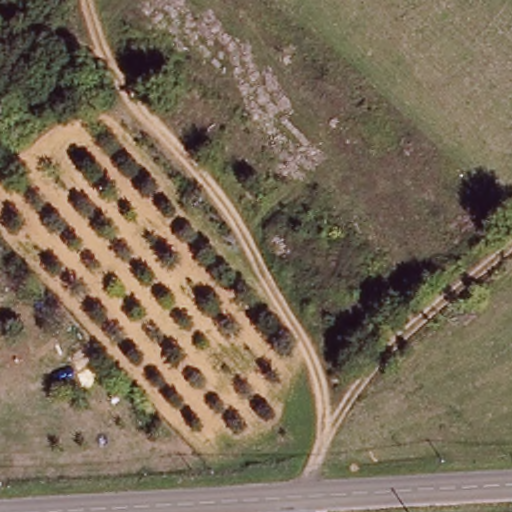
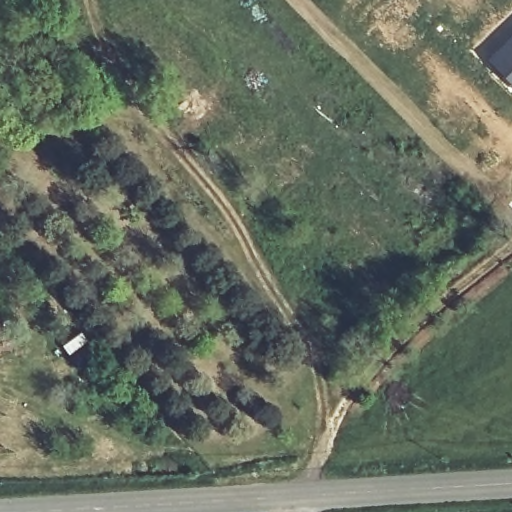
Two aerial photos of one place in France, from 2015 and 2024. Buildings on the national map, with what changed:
new [(512,85),(487,59),(512,37),(512,85)]

